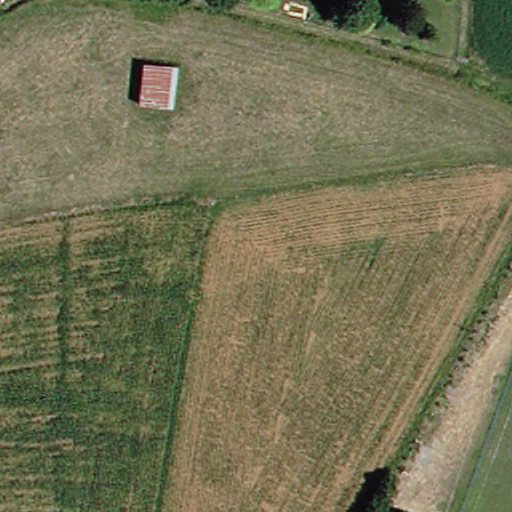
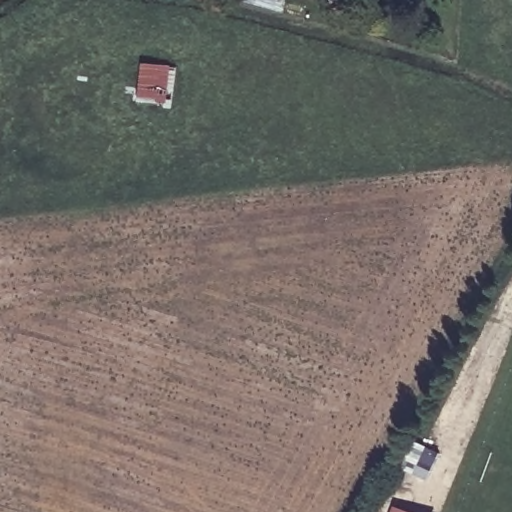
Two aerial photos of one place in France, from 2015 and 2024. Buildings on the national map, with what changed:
unchanged [(140,103),(145,63),(184,65),(177,106),(140,103)]
unchanged [(413,512),(399,512),(401,508),(413,512)]

